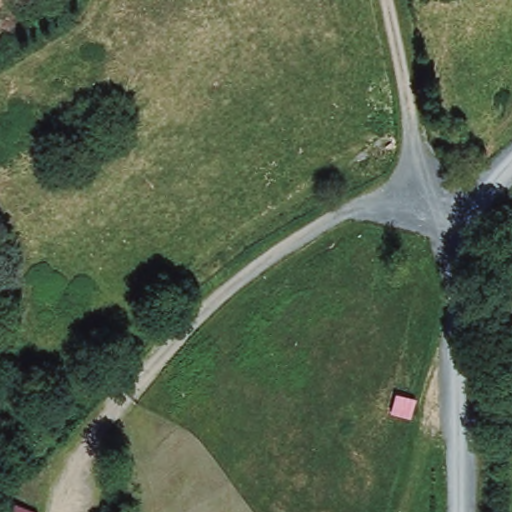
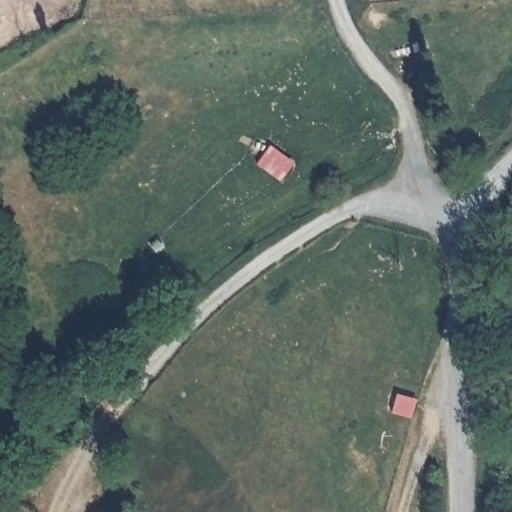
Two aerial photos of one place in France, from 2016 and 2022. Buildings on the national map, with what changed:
[]

